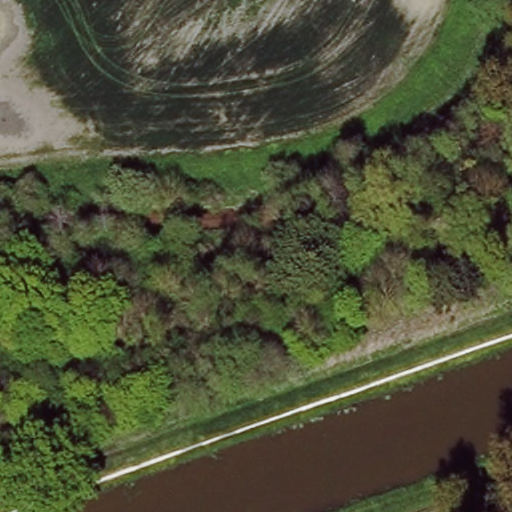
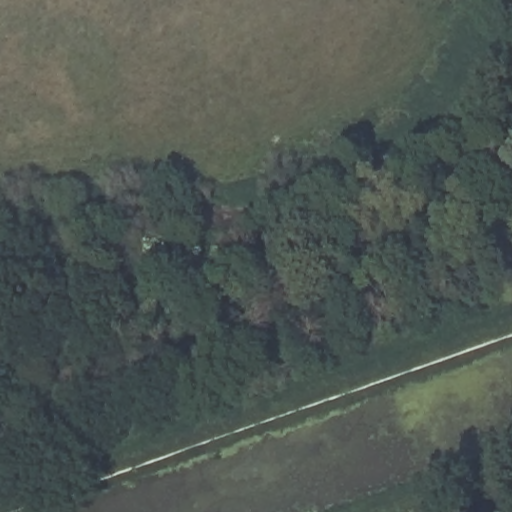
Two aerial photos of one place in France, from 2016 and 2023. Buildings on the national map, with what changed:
unchanged [(428,206),(460,208),(460,237),(427,235),(428,206)]

